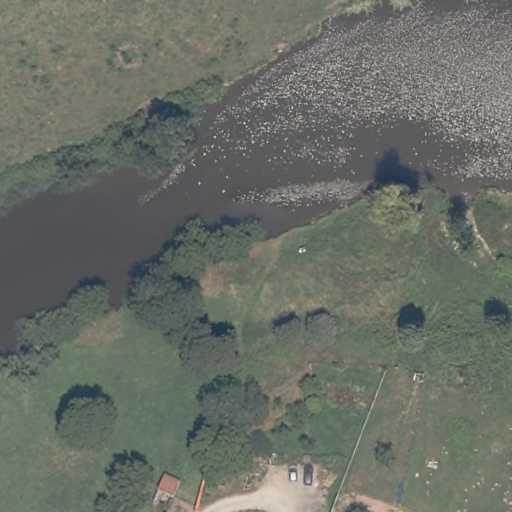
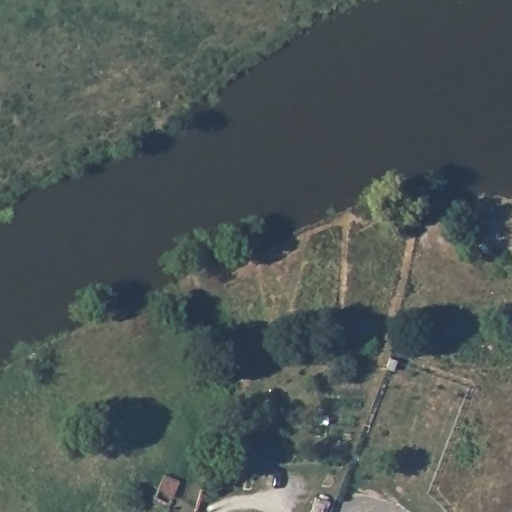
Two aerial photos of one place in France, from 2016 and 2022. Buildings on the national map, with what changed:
unchanged [(162,478),(145,473),(151,457),(168,462),(162,478)]

